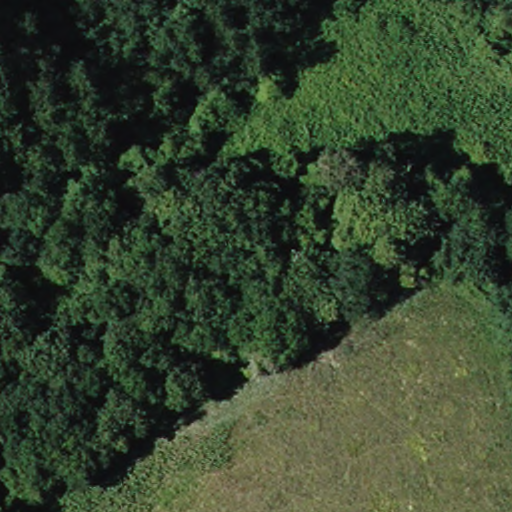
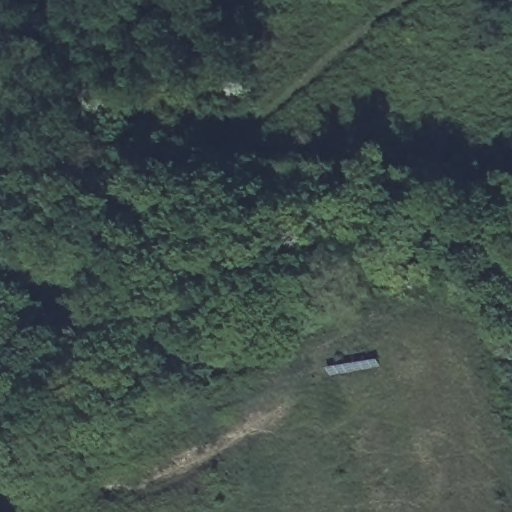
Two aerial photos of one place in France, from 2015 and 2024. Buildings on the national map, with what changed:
unchanged [(438,26),(445,49),(423,54),(417,29),(438,26)]

